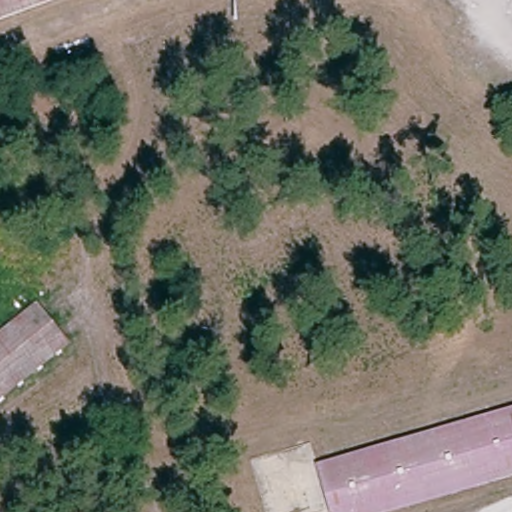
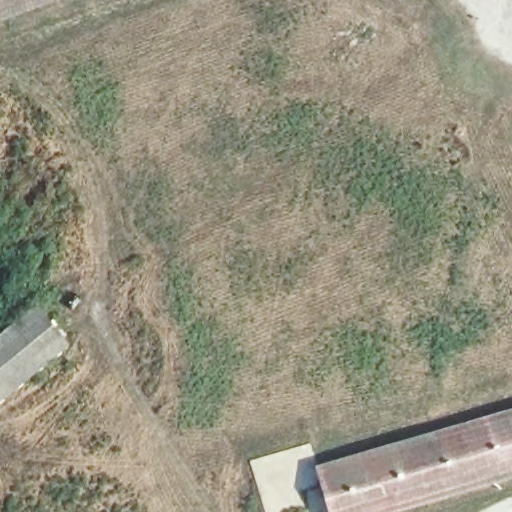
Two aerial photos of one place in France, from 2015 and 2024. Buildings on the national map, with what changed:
unchanged [(0,21),(0,0),(56,0),(0,21)]
unchanged [(66,346),(0,396),(0,331),(34,305),(66,346)]
unchanged [(396,512),(328,512),(316,465),(512,408),(512,479),(396,512)]

